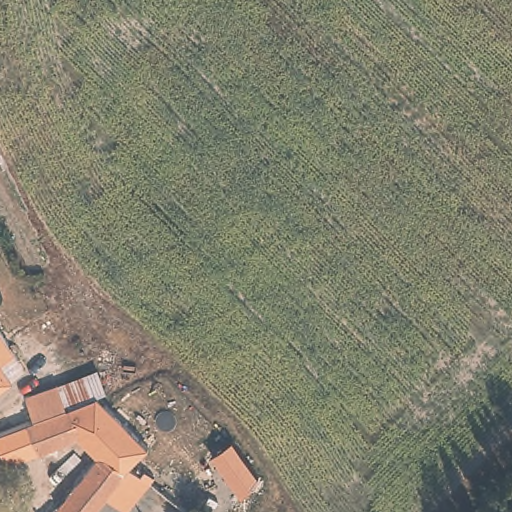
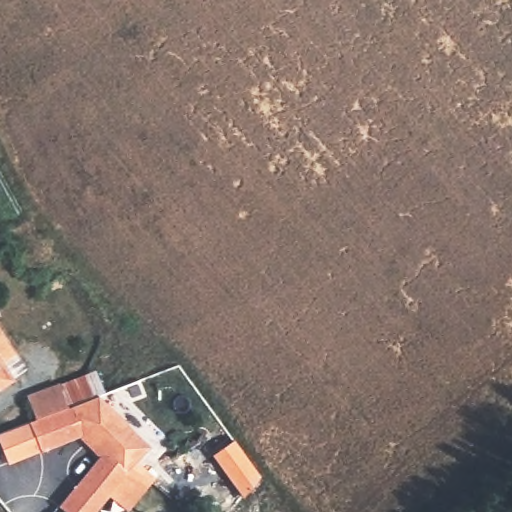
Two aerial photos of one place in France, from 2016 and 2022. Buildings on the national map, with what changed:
unchanged [(6,362),(15,377),(0,387),(0,323),(19,353),(6,362)]
unchanged [(84,434),(44,451),(32,420),(40,417),(31,396),(58,385),(98,370),(106,393),(73,407),(80,425),(84,434)]
unchanged [(234,441),(259,478),(242,500),(210,458),(234,441)]
unchanged [(105,447),(128,467),(133,461),(150,475),(125,505),(108,490),(92,512),(77,512),(62,501),(105,447)]

